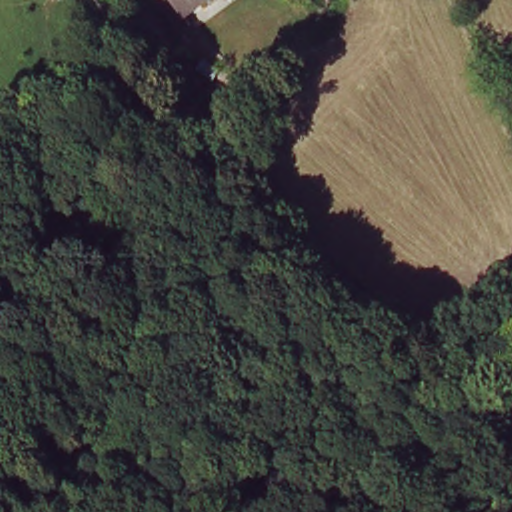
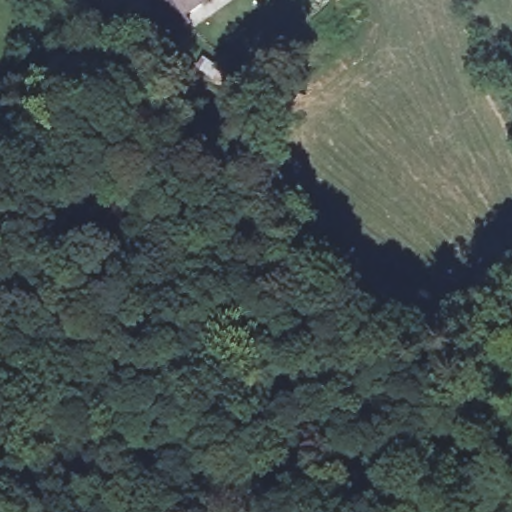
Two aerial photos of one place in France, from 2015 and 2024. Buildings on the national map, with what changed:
unchanged [(195,17),(182,0),(217,0),(195,17)]

